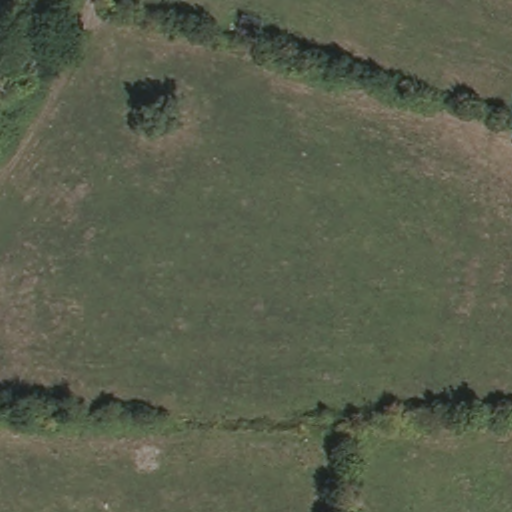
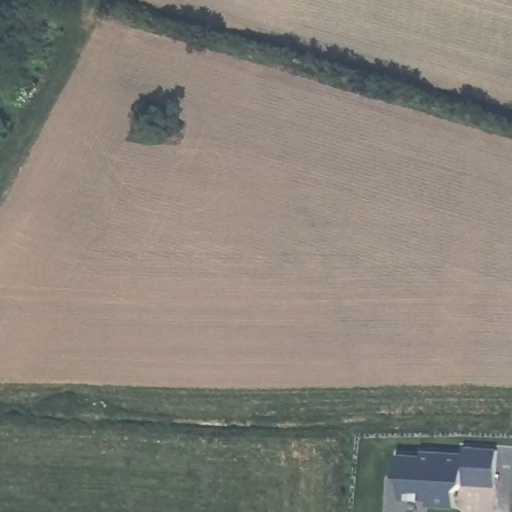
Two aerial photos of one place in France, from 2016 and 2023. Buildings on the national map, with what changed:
new [(492,456),(489,498),(390,495),(391,455),(492,456)]

